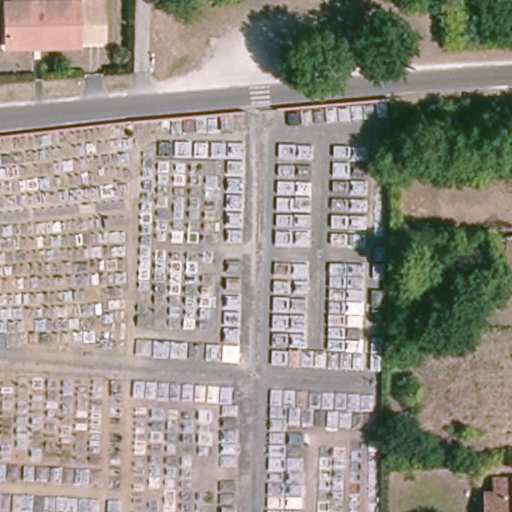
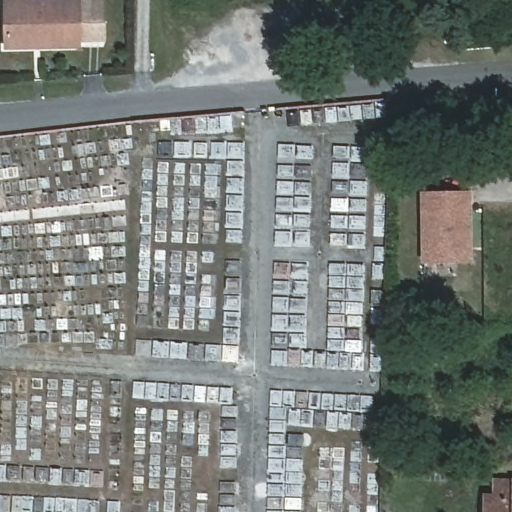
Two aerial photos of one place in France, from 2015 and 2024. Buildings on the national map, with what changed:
unchanged [(45,46),(7,47),(6,2),(78,1),(78,0),(104,0),(104,40),(78,40),(78,46),(45,46)]
new [(420,264),(418,191),(469,190),(472,262),(420,264)]
demolished [(512,262),(510,262),(508,261),(508,235),(512,235),(512,262)]
unchanged [(495,495),(495,480),(512,480),(512,512),(483,512),(483,495),(495,495)]

